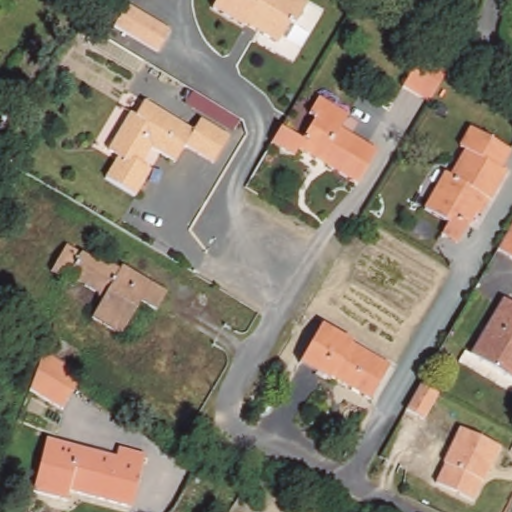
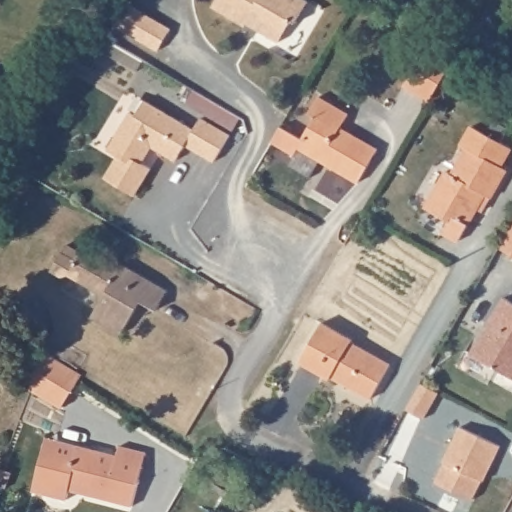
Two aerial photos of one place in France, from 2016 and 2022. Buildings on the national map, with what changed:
unchanged [(124,0),(125,0),(167,25),(154,46),(112,21),(124,0)]
unchanged [(245,26),(214,8),(218,0),(304,0),(309,3),(296,24),(292,22),(279,44),(258,31),(246,24),(245,26)]
unchanged [(402,88),(426,47),(452,63),(428,103),(402,88)]
unchanged [(213,158),(185,141),(175,157),(150,142),(140,159),(150,165),(135,192),(105,174),(118,152),(107,146),(130,108),(135,111),(144,97),(193,126),(200,114),(229,131),(213,158)]
unchanged [(297,148),(316,118),(309,114),(319,98),(348,115),(341,129),(341,130),(377,151),(358,184),(328,167),(322,163),(297,148)]
unchanged [(477,210),(467,226),(458,243),(442,234),(448,223),(425,209),(446,172),(452,175),(466,151),(466,150),(461,147),(471,127),(511,150),(502,166),(501,168),(507,171),(490,200),(482,214),(477,210)]
unchanged [(512,259),(497,251),(502,241),(512,224),(512,259)]
unchanged [(98,294),(69,276),(62,278),(52,271),(66,246),(81,254),(82,254),(104,266),(111,265),(120,270),(122,266),(167,292),(157,311),(141,302),(122,336),(92,318),(101,303),(98,294)]
unchanged [(504,299),(512,303),(512,379),(471,355),(504,299)]
unchanged [(331,378),(330,381),(317,373),(319,370),(302,360),(322,324),(352,341),(352,343),(390,365),(370,400),(332,379),(331,378)]
unchanged [(69,381),(58,398),(36,384),(47,366),(69,381)]
unchanged [(437,396),(421,424),(403,414),(418,388),(437,396)]
unchanged [(447,465),(444,464),(461,427),(502,446),(485,482),(482,481),(473,502),(437,485),(447,465)]
unchanged [(66,501),(33,492),(38,473),(47,439),(57,441),(117,457),(119,447),(146,454),(132,507),(76,493),(69,491),(66,501)]

